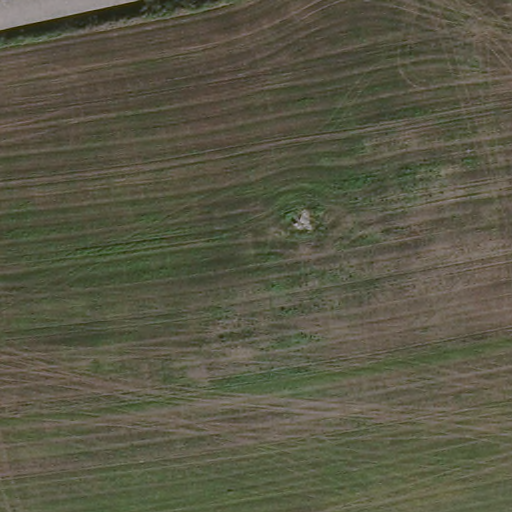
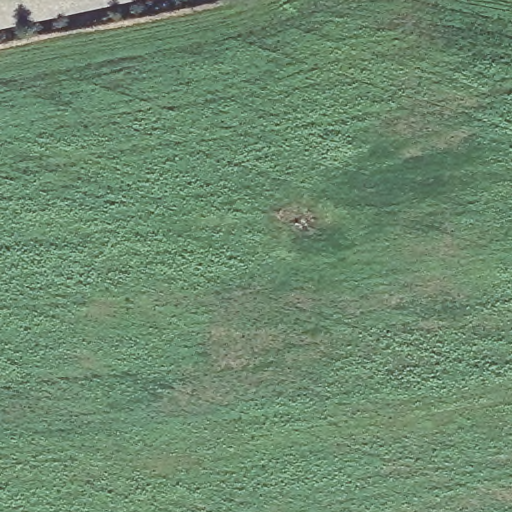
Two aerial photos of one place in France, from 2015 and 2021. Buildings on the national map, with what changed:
unchanged [(0,28),(0,0),(127,0),(0,28)]

